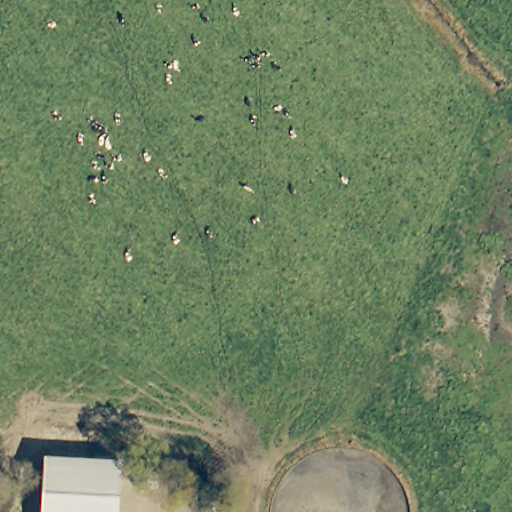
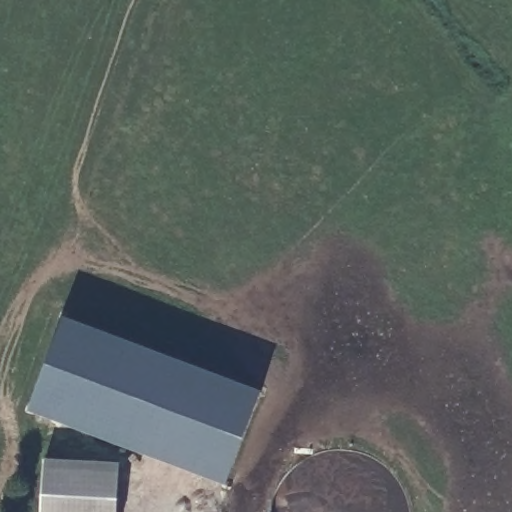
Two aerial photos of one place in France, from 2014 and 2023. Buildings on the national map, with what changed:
new [(228,483),(30,410),(66,314),(265,390),(228,483)]
unchanged [(121,462),(117,512),(41,512),(44,457),(121,462)]

